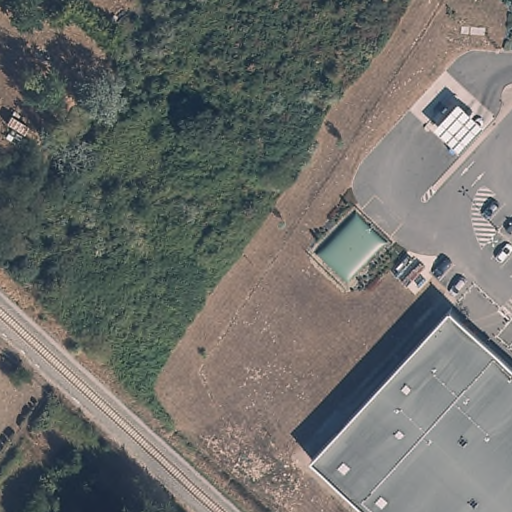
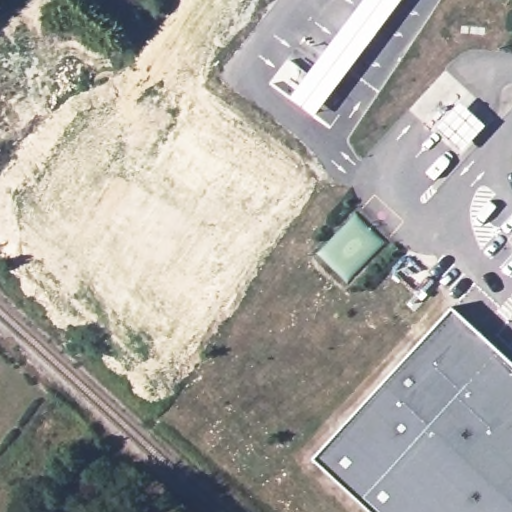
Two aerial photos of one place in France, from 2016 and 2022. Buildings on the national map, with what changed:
new [(362,0),(400,0),(313,116),(289,98),(362,0)]
unchanged [(485,127),(460,154),(435,130),(460,104),(485,127)]
unchanged [(367,512),(312,462),(451,309),(512,366),(512,512),(367,512)]

